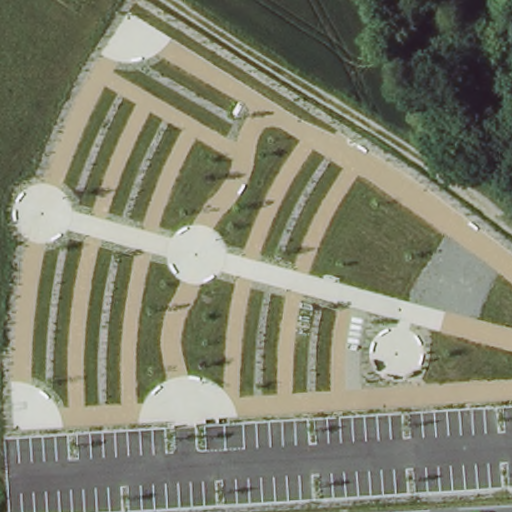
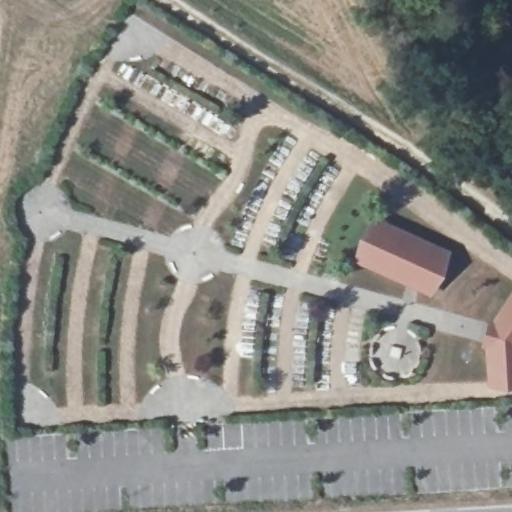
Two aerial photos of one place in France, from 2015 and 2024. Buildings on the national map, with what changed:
new [(449,252),(430,296),(352,262),(372,216),(449,252)]
new [(488,389),(486,352),(480,351),(488,320),(494,322),(512,291),(512,388),(488,389)]

